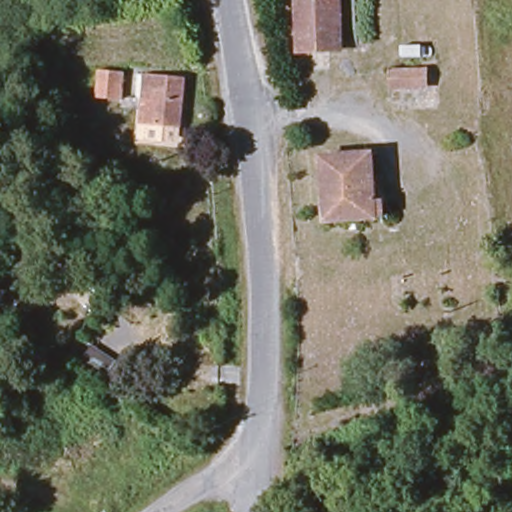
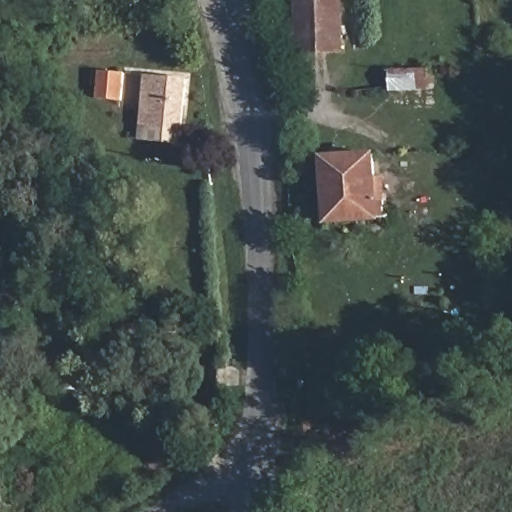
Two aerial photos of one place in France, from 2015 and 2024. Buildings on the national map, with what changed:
unchanged [(302,0),(344,0),(343,55),(300,54),(302,0)]
unchanged [(127,96),(102,101),(96,69),(120,64),(127,96)]
unchanged [(392,91),(390,66),(431,66),(432,90),(392,91)]
unchanged [(188,117),(145,125),(134,78),(179,69),(188,117)]
unchanged [(381,223),(372,222),(322,219),(325,153),(375,154),(373,198),(382,198),(381,223)]

